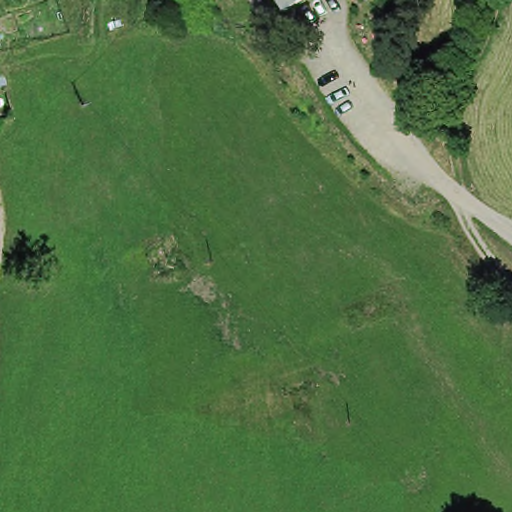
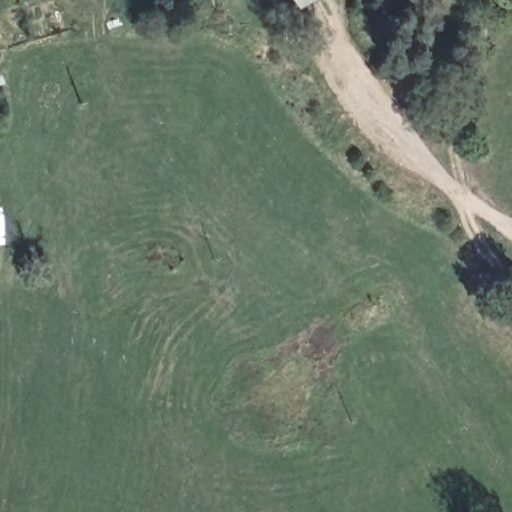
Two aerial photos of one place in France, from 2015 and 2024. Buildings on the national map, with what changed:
unchanged [(302,15),(293,0),(326,0),(302,15)]

